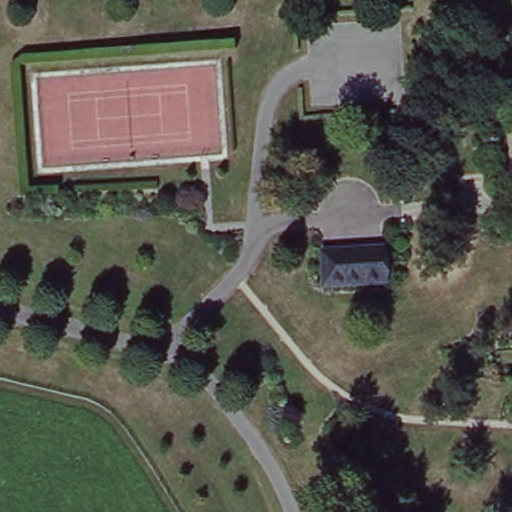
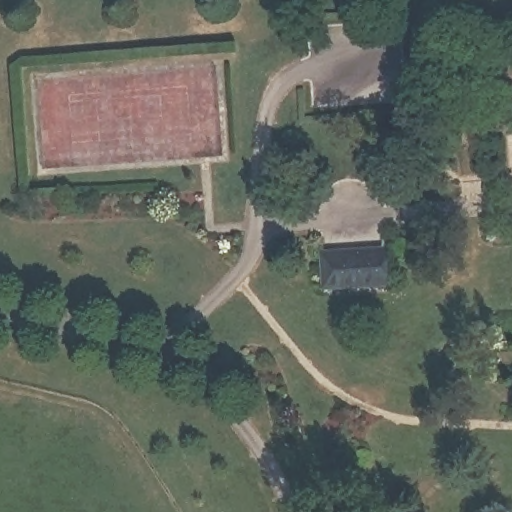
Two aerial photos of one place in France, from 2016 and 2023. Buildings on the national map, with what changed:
unchanged [(398,133),(403,154),(367,162),(364,156),(332,161),(328,146),(398,133)]
unchanged [(322,248),(387,246),(390,282),(324,286),(322,248)]

